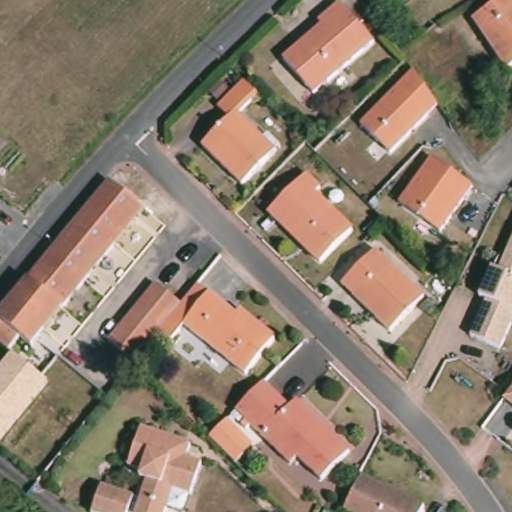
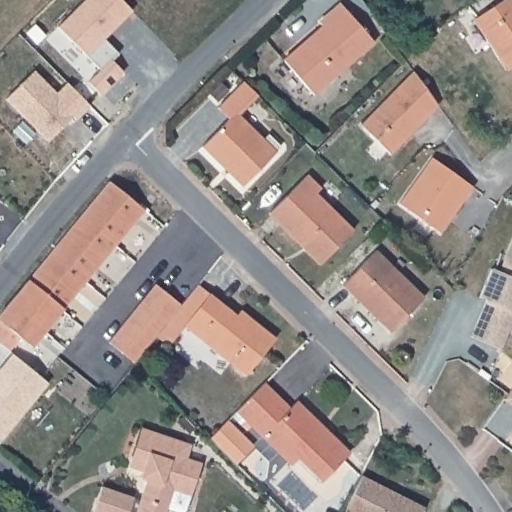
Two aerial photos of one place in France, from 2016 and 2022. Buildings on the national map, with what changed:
new [(86,81),(99,69),(57,26),(85,0),(123,0),(133,10),(104,39),(118,52),(111,59),(124,71),(100,94),(86,81)]
unchanged [(473,20),(504,0),(512,0),(512,66),(506,70),(473,20)]
unchanged [(373,44),(305,103),(276,69),(314,35),(311,31),(339,6),(373,44)]
new [(33,72),(55,94),(66,84),(88,107),(74,121),(71,117),(46,142),(4,100),(33,72)]
unchanged [(436,110),(388,157),(359,130),(412,77),(436,110)]
unchanged [(266,161),(239,188),(200,148),(225,120),(215,109),(241,83),(256,98),(237,117),(262,141),(274,154),(266,161)]
unchanged [(469,187),(438,233),(398,205),(430,159),(469,187)]
unchanged [(318,191),(314,196),(350,232),(318,265),(267,214),(304,177),(318,191)]
unchanged [(20,337),(8,350),(0,345),(0,313),(108,181),(143,211),(31,346),(20,337)]
unchanged [(470,335),(486,298),(479,295),(491,267),(493,267),(499,252),(504,254),(512,237),(512,321),(500,348),(470,335)]
unchanged [(422,297),(387,332),(340,286),(375,251),(422,297)]
unchanged [(158,334),(136,362),(110,341),(157,283),(183,304),(158,334)]
unchanged [(243,376),(182,326),(207,295),(237,318),(242,313),(273,339),(243,376)]
unchanged [(11,354),(46,382),(0,440),(0,368),(11,354)]
unchanged [(289,414),(296,406),(348,457),(321,486),(297,463),(289,470),(234,416),(262,388),(289,414)]
unchanged [(507,394),(512,388),(512,403),(504,398),(507,394)]
unchanged [(142,499),(149,478),(141,476),(144,468),(131,464),(144,426),(192,442),(188,455),(203,460),(191,493),(186,509),(182,510),(168,506),(166,512),(132,512),(131,511),(131,512),(95,512),(104,485),(136,496),(136,497),(142,499)]
unchanged [(419,512),(349,512),(342,509),(360,473),(422,505),(419,512)]

